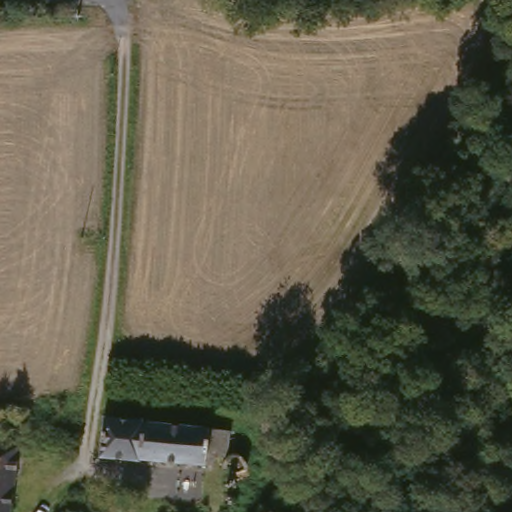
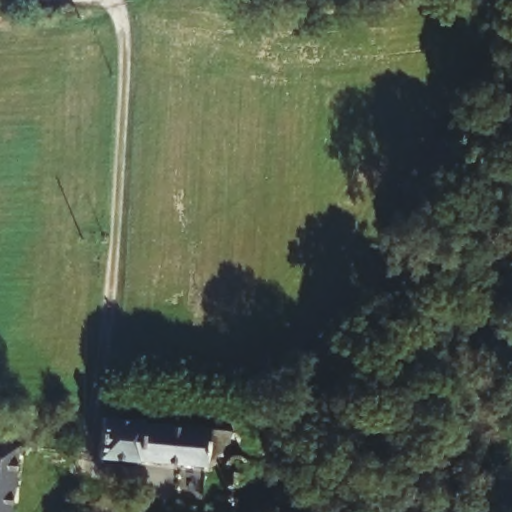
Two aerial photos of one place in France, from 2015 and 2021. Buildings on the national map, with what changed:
unchanged [(141,416),(144,421),(196,426),(210,429),(233,432),(232,436),(231,451),(217,450),(216,462),(138,453),(133,455),(102,452),(107,412),(141,416)]
unchanged [(16,512),(0,512),(0,443),(31,450),(16,512)]

